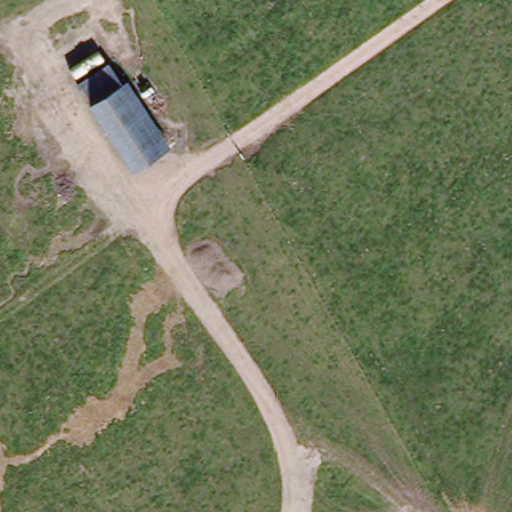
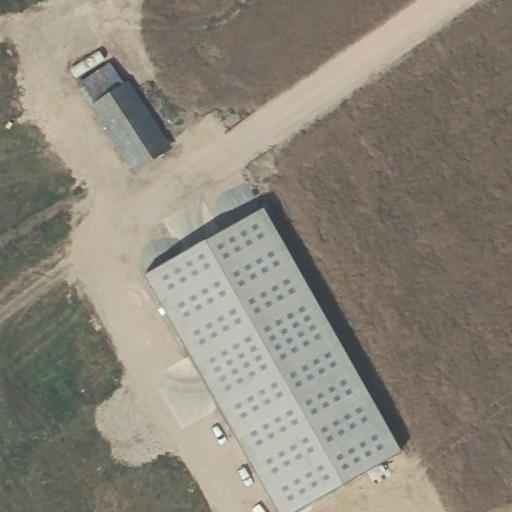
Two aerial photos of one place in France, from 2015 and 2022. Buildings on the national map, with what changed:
unchanged [(118,71),(166,150),(137,168),(89,88),(118,71)]
new [(295,512),(275,512),(142,279),(263,210),(402,454),(295,512)]

